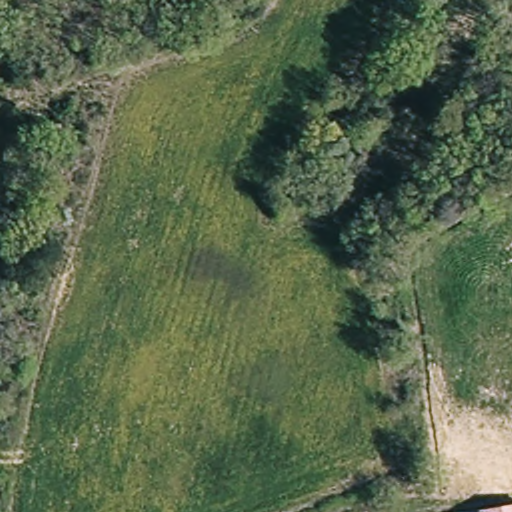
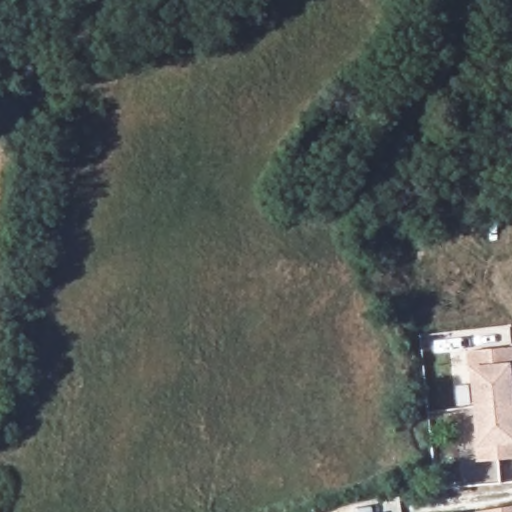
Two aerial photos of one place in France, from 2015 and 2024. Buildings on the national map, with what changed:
new [(512,382),(508,382),(510,404),(471,407),(466,352),(511,348),(512,354),(512,382)]
new [(512,459),(475,462),(471,407),(510,404),(512,404),(512,459)]
unchanged [(512,512),(494,512),(512,509),(512,512)]

